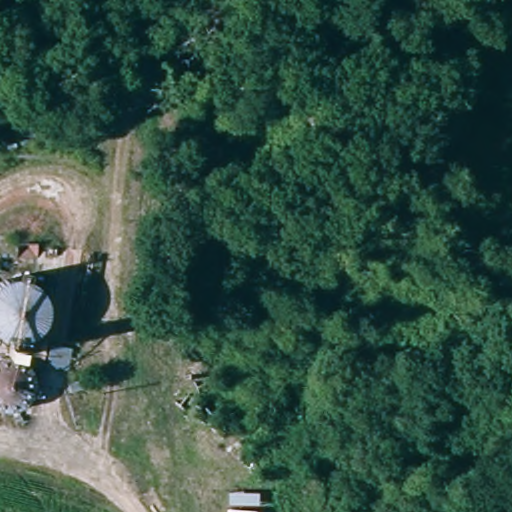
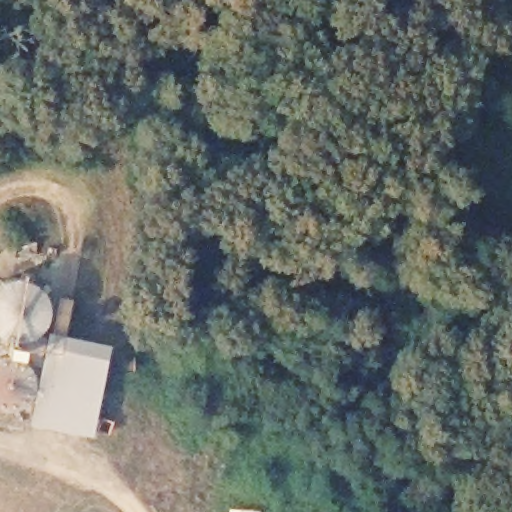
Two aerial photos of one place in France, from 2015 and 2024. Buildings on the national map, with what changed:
unchanged [(47,328),(40,337),(31,343),(21,345),(5,342),(0,338),(0,288),(3,285),(18,281),(30,283),(42,290),(49,300),(51,317),(47,328)]
new [(92,436),(29,424),(34,405),(36,404),(42,395),(45,383),(44,373),(41,364),(47,328),(108,341),(92,436)]
unchanged [(44,373),(45,383),(42,395),(36,404),(26,411),(13,414),(0,411),(0,351),(12,348),(24,350),(34,356),(41,364),(44,373)]

